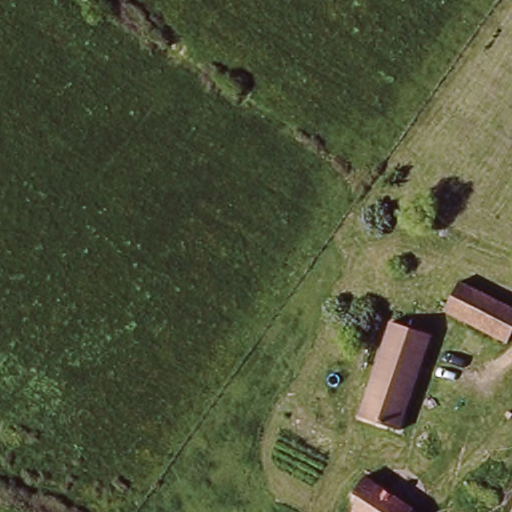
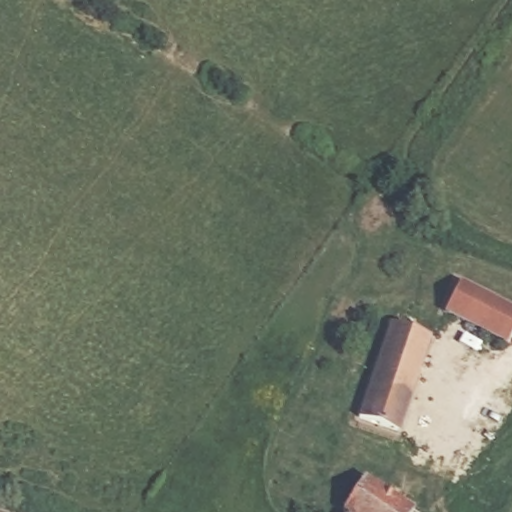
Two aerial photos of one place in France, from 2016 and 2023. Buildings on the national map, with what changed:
unchanged [(512,311),(512,335),(505,347),(445,316),(461,285),(512,311)]
unchanged [(430,332),(405,428),(367,419),(391,323),(430,332)]
unchanged [(363,481),(409,512),(341,512),(363,481)]

